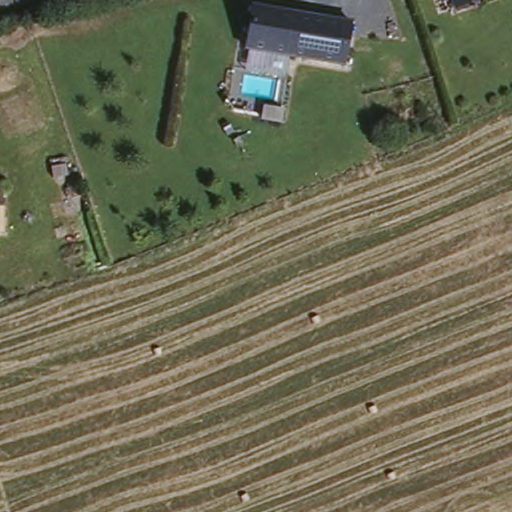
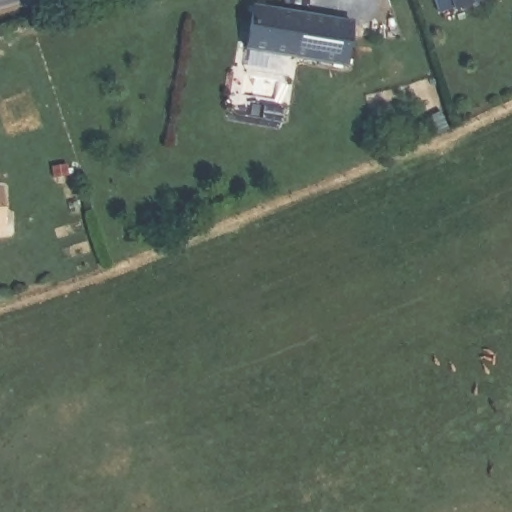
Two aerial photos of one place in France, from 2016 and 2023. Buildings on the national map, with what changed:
unchanged [(448,11),(444,0),(486,0),(448,11)]
unchanged [(354,17),(347,63),(249,45),(256,1),(354,17)]
unchanged [(2,185),(7,233),(0,233),(0,185),(2,185)]

